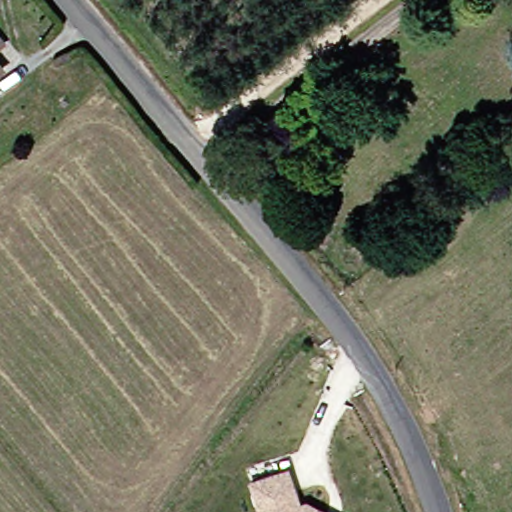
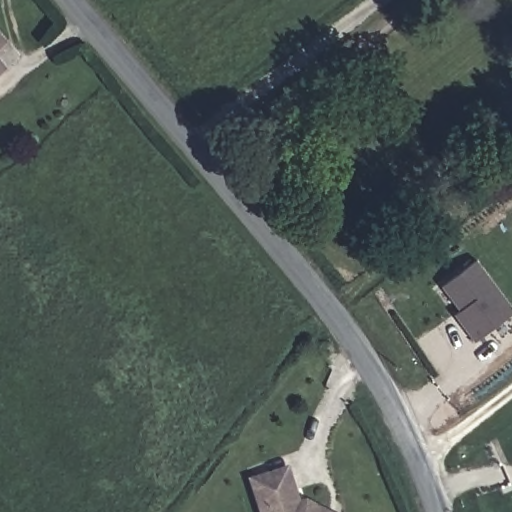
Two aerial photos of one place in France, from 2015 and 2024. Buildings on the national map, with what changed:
new [(512,307),(512,315),(476,342),(460,321),(466,317),(443,287),(478,260),(512,307)]
unchanged [(310,497),(335,512),(261,512),(250,479),(292,465),(302,501),(310,497)]

